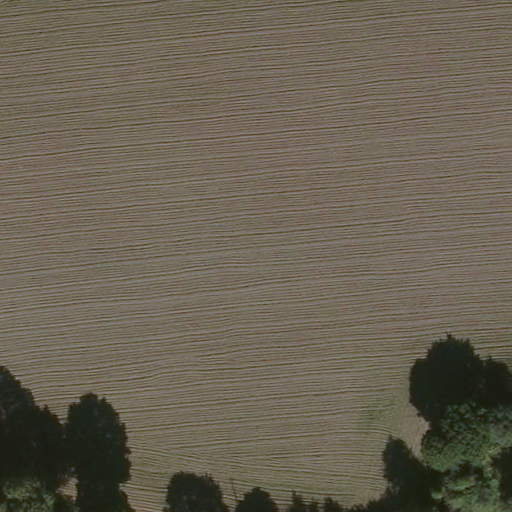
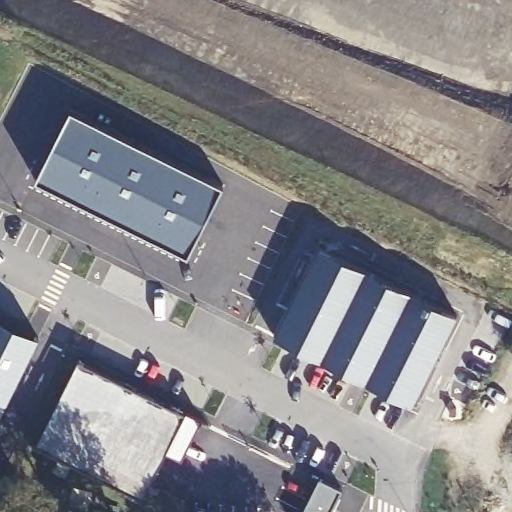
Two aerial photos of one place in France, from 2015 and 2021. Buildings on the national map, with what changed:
new [(222,184),(186,250),(36,171),(71,105),(222,184)]
new [(456,316),(411,403),(273,333),(321,247),(321,245),(456,316)]
new [(14,331),(0,360),(0,323),(14,331)]
new [(78,365),(193,423),(174,460),(161,453),(133,501),(24,442),(73,361),(78,365)]
new [(326,512),(298,512),(314,472),(339,482),(326,512)]

